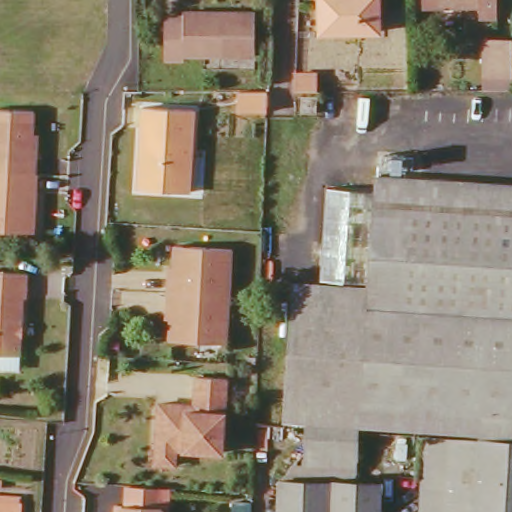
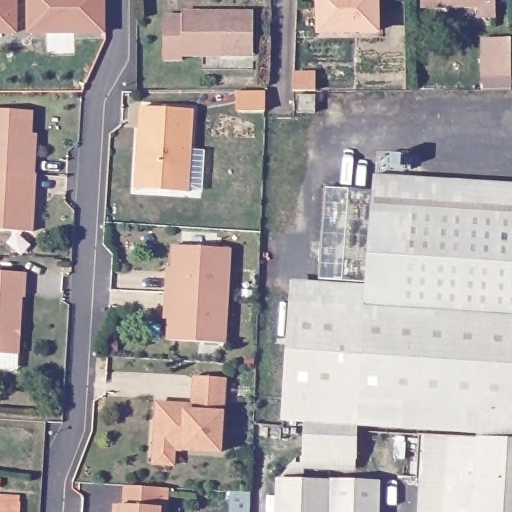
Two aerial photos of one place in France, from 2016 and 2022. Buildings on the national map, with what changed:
new [(0,34),(0,0),(15,0),(15,34),(0,34)]
new [(28,34),(28,0),(102,0),(102,33),(28,34)]
unchanged [(377,0),(378,32),(319,33),(319,0),(377,0)]
unchanged [(490,0),(490,12),(472,12),(472,4),(470,2),(415,3),(415,0),(490,0)]
unchanged [(163,15),(181,15),(181,10),(233,10),(233,15),(253,15),(253,57),(183,57),(183,62),(163,62),(163,15)]
unchanged [(478,46),(505,46),(506,80),(478,80),(478,46)]
unchanged [(294,74),(316,74),(316,90),(294,90),(293,90),(294,74)]
new [(238,91),(265,91),(264,111),(238,111),(238,91)]
unchanged [(298,95),(314,95),(314,112),(298,112),(298,95)]
unchanged [(138,129),(139,129),(139,107),(190,110),(187,192),(143,190),(136,190),(138,129)]
unchanged [(31,233),(0,232),(0,111),(30,112),(29,135),(34,135),(33,157),(33,175),(31,233)]
unchanged [(473,426),(354,418),(362,301),(364,278),(314,275),(320,184),(369,187),(370,172),(512,182),(512,436),(473,434),(473,426)]
unchanged [(165,312),(166,276),(166,268),(171,268),(172,247),(229,250),(225,345),(168,342),(168,320),(164,320),(165,312)]
unchanged [(23,298),(20,299),(18,356),(0,356),(0,273),(24,275),(23,298)]
unchanged [(286,297),(362,301),(354,418),(349,418),(306,415),(279,413),(286,297)]
unchanged [(153,465),(153,450),(154,450),(156,405),(179,405),(179,406),(193,406),(194,379),(224,380),(221,454),(174,451),(173,466),(153,465)]
unchanged [(304,443),(306,415),(349,418),(349,426),(346,479),(324,478),(274,476),(304,443)]
unchanged [(419,431),(473,434),(468,512),(413,512),(419,431)]
unchanged [(473,434),(512,436),(512,512),(468,512),(473,434)]
unchanged [(274,476),(324,478),(322,512),(273,512),(274,476)]
unchanged [(324,478),(346,479),(374,480),(373,512),(322,512),(324,478)]
unchanged [(160,512),(114,512),(114,507),(123,507),(124,488),(158,490),(157,509),(160,509),(160,512)]
unchanged [(18,512),(0,512),(0,505),(18,506),(18,512)]

